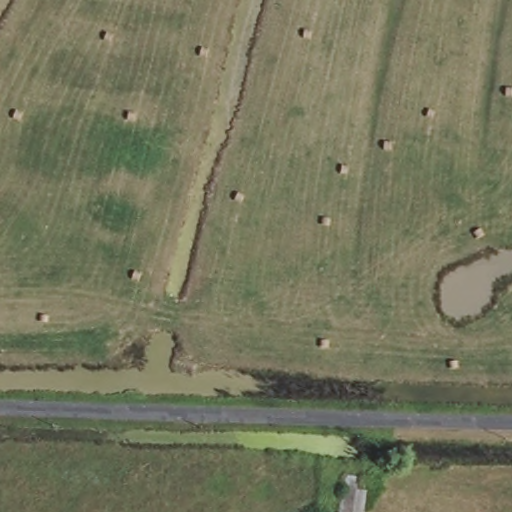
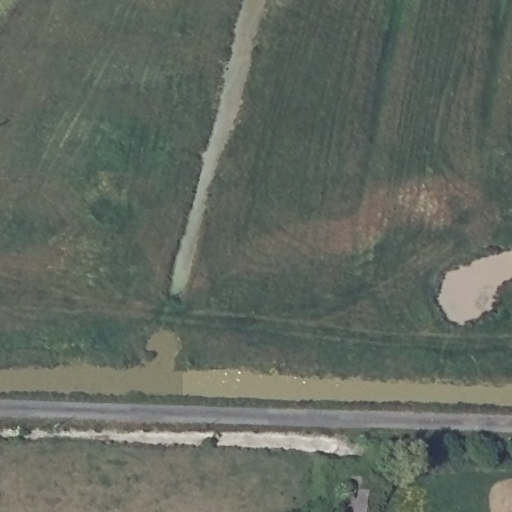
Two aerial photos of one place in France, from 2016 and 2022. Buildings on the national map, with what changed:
unchanged [(341,512),(345,474),(367,478),(363,512),(341,512)]

